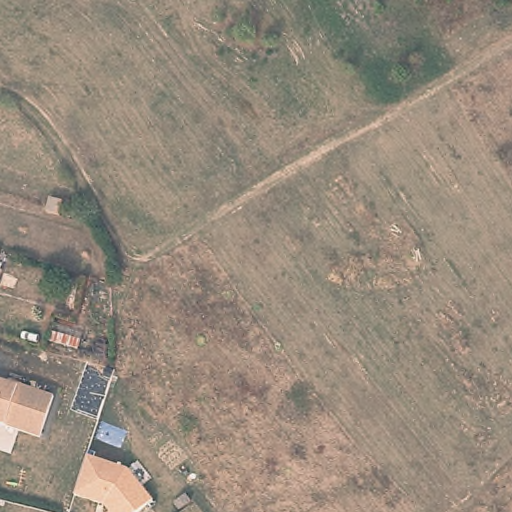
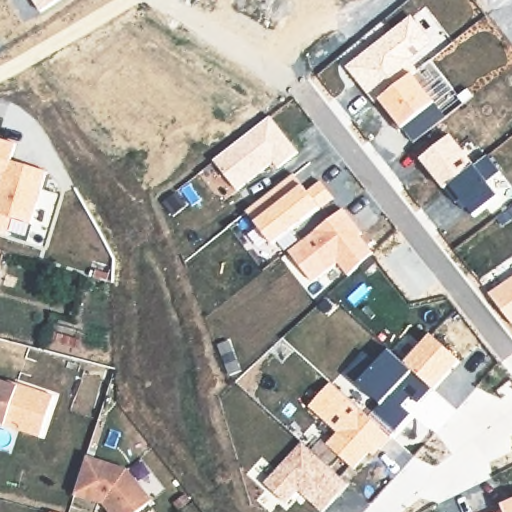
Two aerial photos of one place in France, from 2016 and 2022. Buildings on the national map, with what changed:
new [(410,16),(431,43),(409,60),(417,71),(414,74),(435,102),(401,128),(398,129),(377,102),(374,104),(345,67),(410,16)]
new [(269,117),(299,152),(278,170),(272,164),(237,190),(212,161),(269,117)]
new [(419,159),(450,134),(473,166),(485,155),(500,172),(490,182),(500,196),(473,217),(464,206),(463,209),(446,186),(444,189),(419,159)]
new [(0,232),(0,137),(16,142),(11,160),(47,171),(30,225),(10,218),(8,234),(0,232)]
new [(294,174),(307,191),(318,183),(330,198),(273,245),(247,211),(294,174)]
new [(341,210),(374,249),(344,274),(336,264),(311,282),(289,252),(341,210)]
unchanged [(0,255),(0,246),(2,247),(0,255)]
new [(512,277),(512,323),(490,293),(512,277)]
new [(356,384),(345,372),(365,353),(376,363),(389,349),(412,371),(431,388),(395,429),(374,410),(379,404),(356,384)]
new [(368,452),(353,467),(327,444),(337,433),(308,407),(330,382),(392,437),(375,457),(368,452)]
unchanged [(10,388),(11,385),(55,401),(40,442),(0,428),(0,384),(10,388)]
new [(322,512),(320,512),(299,492),(286,503),(264,483),(301,441),(348,485),(322,512)]
unchanged [(125,471),(150,501),(136,512),(107,512),(102,505),(72,497),(85,459),(125,471)]
new [(512,512),(494,512),(504,508),(502,504),(512,499),(512,512)]

